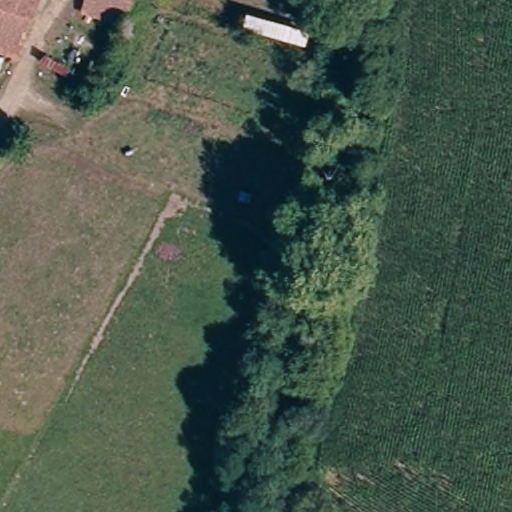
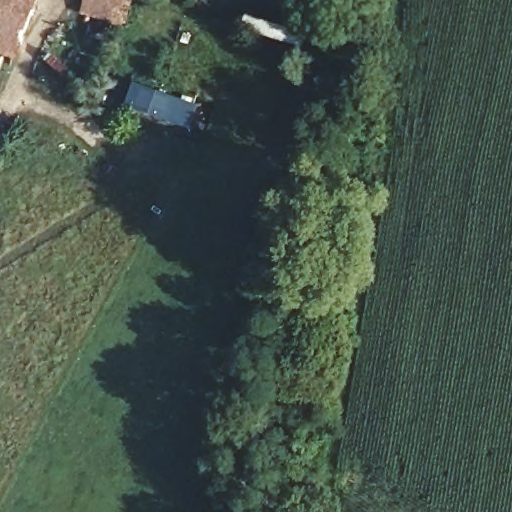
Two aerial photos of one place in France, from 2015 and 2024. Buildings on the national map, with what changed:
unchanged [(38,0),(17,56),(0,50),(0,0),(38,0)]
unchanged [(87,0),(119,0),(127,4),(134,6),(123,29),(117,26),(82,11),(87,0)]
unchanged [(129,0),(127,4),(119,0),(129,0)]
new [(184,125),(127,103),(137,81),(192,103),(184,125)]

